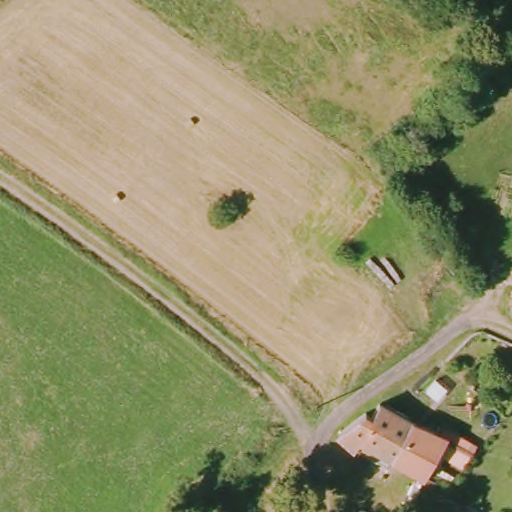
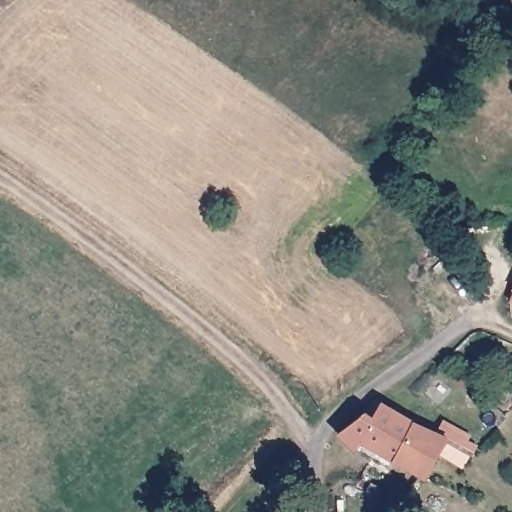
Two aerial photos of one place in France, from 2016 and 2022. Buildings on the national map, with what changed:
unchanged [(512,292),(512,305),(508,303),(512,292)]
unchanged [(428,473),(424,478),(362,441),(353,449),(339,425),(365,402),(369,408),(377,395),(449,434),(428,473)]

